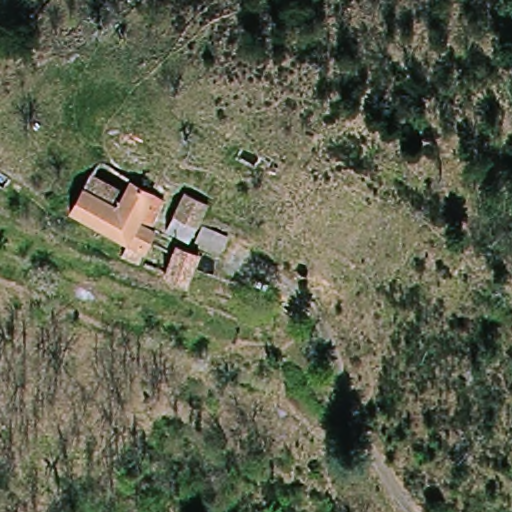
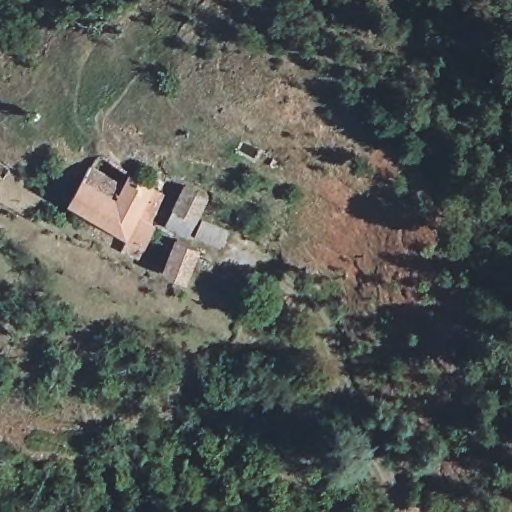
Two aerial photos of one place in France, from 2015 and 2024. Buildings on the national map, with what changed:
unchanged [(155,187),(166,194),(149,220),(155,224),(137,255),(121,247),(128,234),(72,199),(85,179),(108,194),(117,180),(126,187),(135,174),(155,187)]
unchanged [(188,234),(167,222),(190,187),(211,200),(188,234)]
unchanged [(185,277),(163,267),(178,239),(198,249),(185,277)]

